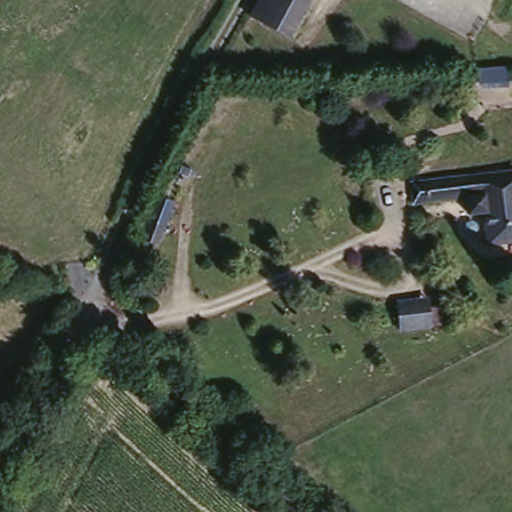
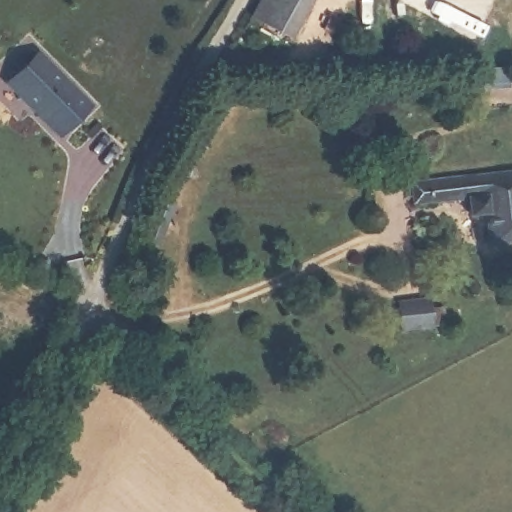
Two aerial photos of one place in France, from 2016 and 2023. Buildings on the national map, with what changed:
unchanged [(282,43),(244,21),(256,0),(309,0),(282,43)]
new [(38,49),(91,106),(59,138),(5,83),(38,49)]
unchanged [(487,242),(483,217),(472,216),(468,200),(414,206),(411,179),(512,166),(512,239),(487,242)]
demolished [(150,186),(167,189),(155,233),(138,230),(150,186)]
new [(158,198),(175,201),(163,245),(146,242),(158,198)]
unchanged [(425,301),(430,327),(400,331),(396,304),(425,301)]

